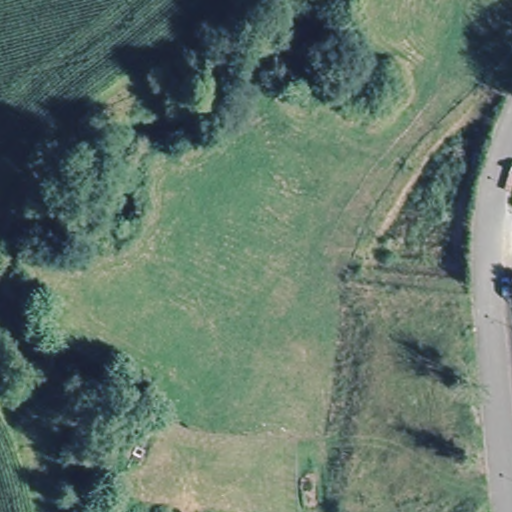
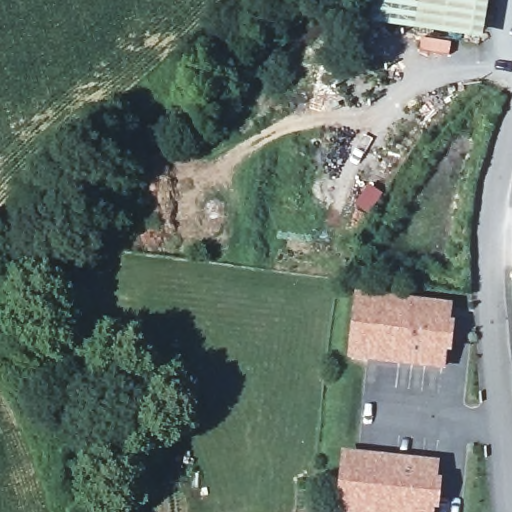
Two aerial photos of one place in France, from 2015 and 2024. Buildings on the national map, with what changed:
new [(485,45),(414,34),(420,0),(492,0),(485,45)]
new [(453,305),(451,323),(456,324),(454,354),(446,353),(444,373),(350,361),(357,293),(453,305)]
new [(438,480),(442,481),(440,512),(435,512),(337,512),(344,452),(439,463),(438,480)]

